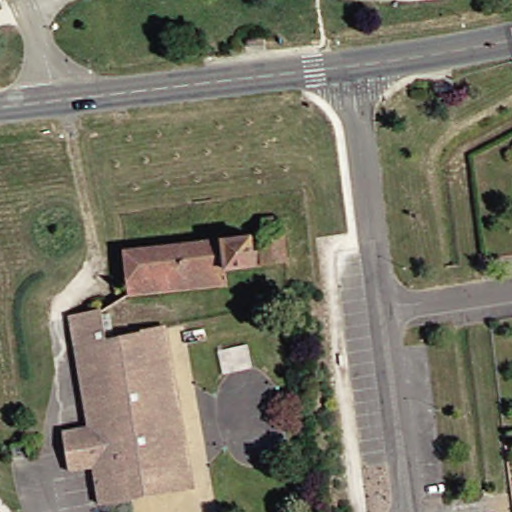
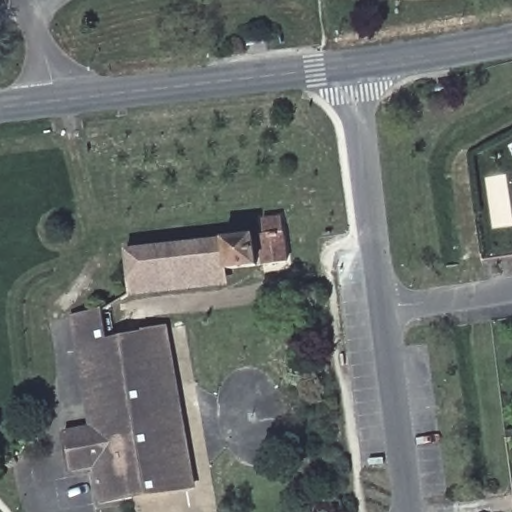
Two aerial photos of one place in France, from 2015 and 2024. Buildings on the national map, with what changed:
unchanged [(133,250),(271,234),(270,217),(289,215),(294,260),(232,267),(135,279),(133,250)]
unchanged [(138,296),(135,279),(232,267),(234,285),(138,296)]
unchanged [(196,487),(105,502),(98,468),(73,472),(67,433),(93,428),(75,318),(102,311),(109,339),(170,327),(196,487)]

